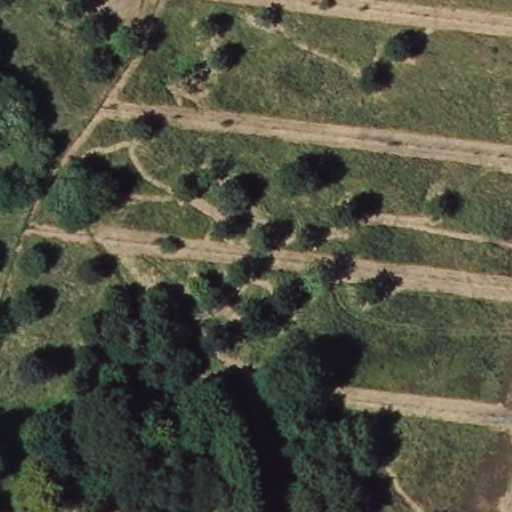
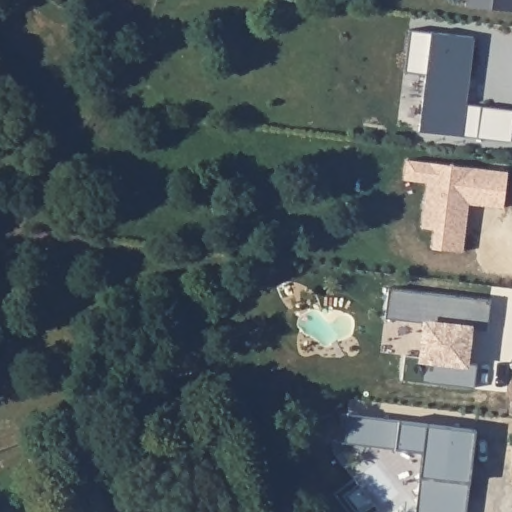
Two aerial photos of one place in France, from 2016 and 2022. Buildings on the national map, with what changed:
new [(468,0),(512,0),(512,10),(468,4),(468,0)]
new [(420,130),(423,100),(403,99),(410,30),(474,38),(466,103),(512,109),(512,125),(510,140),(420,130)]
new [(432,247),(433,229),(421,228),(426,183),(404,179),(406,159),(507,171),(503,208),(470,204),(464,251),(432,247)]
new [(487,331),(470,328),(465,364),(476,365),(475,386),(403,377),(405,356),(422,358),(427,322),(385,317),(390,287),(490,300),(487,331)]

